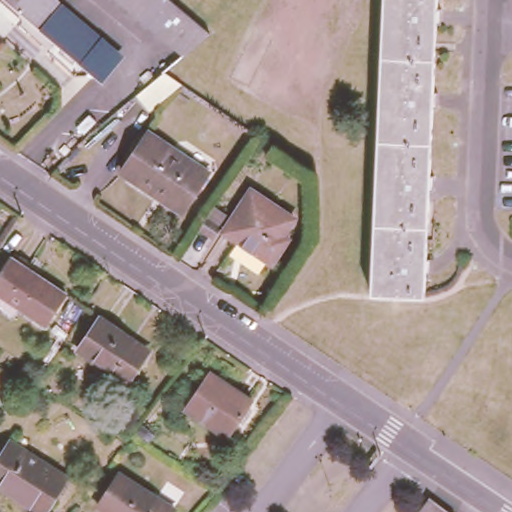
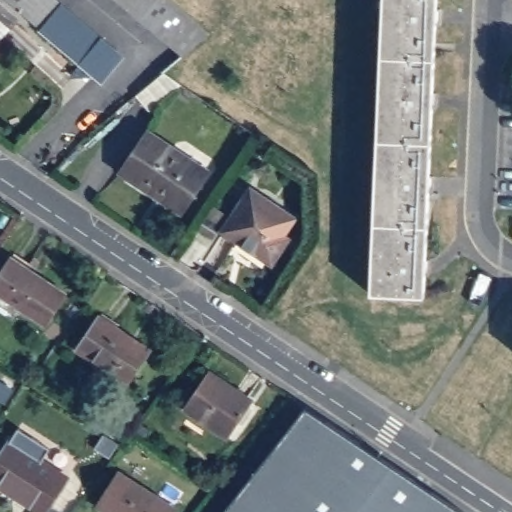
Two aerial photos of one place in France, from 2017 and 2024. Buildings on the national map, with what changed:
unchanged [(61,3),(104,37),(125,55),(104,84),(40,28),(7,0),(57,0),(61,3)]
unchanged [(116,0),(167,0),(205,33),(180,55),(116,0)]
unchanged [(435,9),(440,9),(440,27),(434,27),(432,93),(437,92),(437,109),(430,109),(427,176),(433,176),(432,192),(426,193),(422,259),(427,259),(427,273),(422,273),(422,296),(368,294),(381,0),(435,0),(435,9)]
unchanged [(0,31),(0,19),(6,24),(0,31)]
unchanged [(206,172),(181,213),(122,174),(147,135),(206,172)]
unchanged [(251,186),(294,215),(284,230),(290,235),(273,260),(224,228),(251,186)]
unchanged [(214,234),(199,225),(205,215),(220,224),(214,234)]
unchanged [(12,255),(67,293),(45,323),(0,293),(0,273),(12,255)]
unchanged [(75,347),(96,315),(129,337),(145,348),(143,352),(125,380),(75,347)]
unchanged [(209,371),(249,398),(225,436),(184,407),(209,371)]
new [(457,512),(229,512),(305,415),(457,512)]
unchanged [(47,448),(39,461),(65,477),(42,512),(41,512),(0,486),(0,455),(9,441),(17,429),(47,448)]
unchanged [(172,509),(170,512),(103,512),(94,506),(116,473),(172,509)]
demolished [(418,512),(430,497),(449,512),(418,512)]

